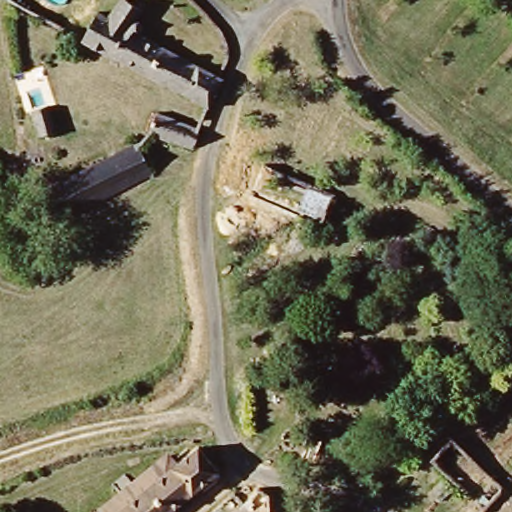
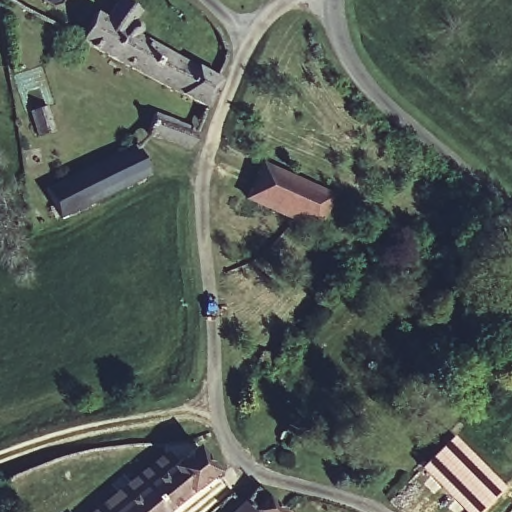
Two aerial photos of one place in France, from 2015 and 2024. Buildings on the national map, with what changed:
unchanged [(75,41),(89,13),(106,23),(122,4),(140,14),(129,33),(162,50),(147,79),(128,69),(90,50),(75,41)]
unchanged [(224,78),(212,110),(147,79),(162,50),(224,78)]
unchanged [(20,90),(28,88),(31,97),(22,99),(20,90)]
unchanged [(55,129),(36,137),(25,112),(45,106),(55,129)]
unchanged [(147,131),(157,111),(200,129),(193,148),(147,131)]
unchanged [(53,188),(137,147),(150,175),(60,220),(46,192),(53,188)]
new [(262,159),(337,193),(322,232),(245,197),(262,159)]
unchanged [(501,489),(480,512),(428,464),(450,441),(501,489)]
unchanged [(215,479),(177,512),(123,512),(170,474),(195,455),(215,479)]
unchanged [(157,462),(170,474),(123,512),(95,512),(157,462)]
unchanged [(232,499),(237,497),(242,503),(253,493),(271,512),(217,512),(232,499)]

